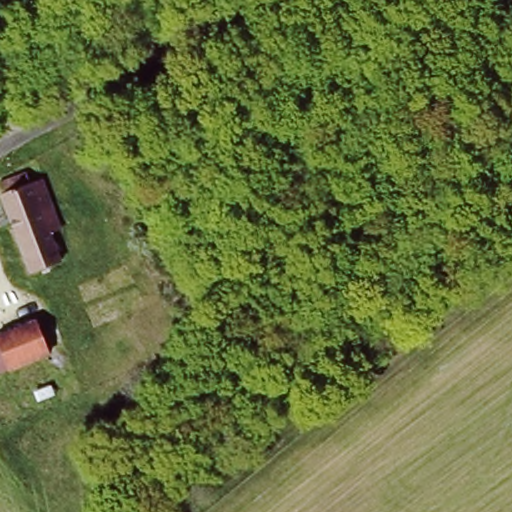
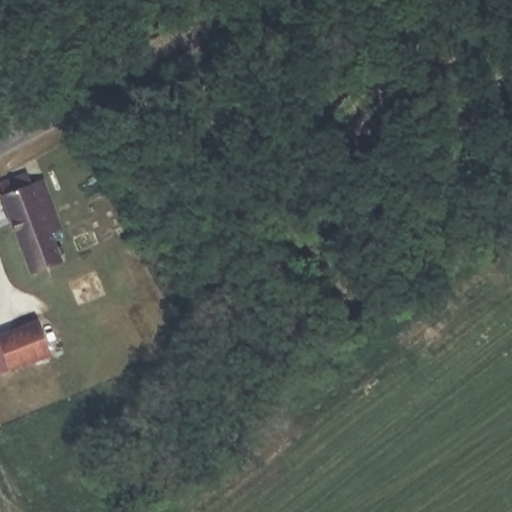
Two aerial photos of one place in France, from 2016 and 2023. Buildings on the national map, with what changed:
unchanged [(42,185),(57,210),(43,218),(65,259),(32,277),(0,218),(0,206),(4,204),(0,198),(0,186),(22,174),(32,190),(42,185)]
unchanged [(57,355),(0,378),(0,333),(41,312),(57,355)]

